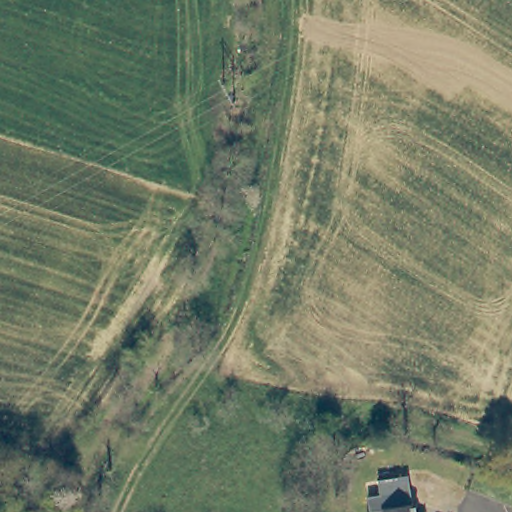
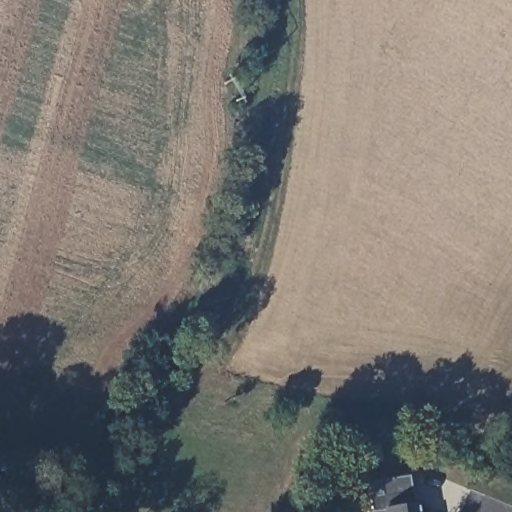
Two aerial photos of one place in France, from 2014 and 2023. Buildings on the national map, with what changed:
unchanged [(412,494),(415,493),(417,502),(424,512),(368,512),(367,509),(370,509),(368,495),(381,493),(379,478),(409,473),(412,494)]

